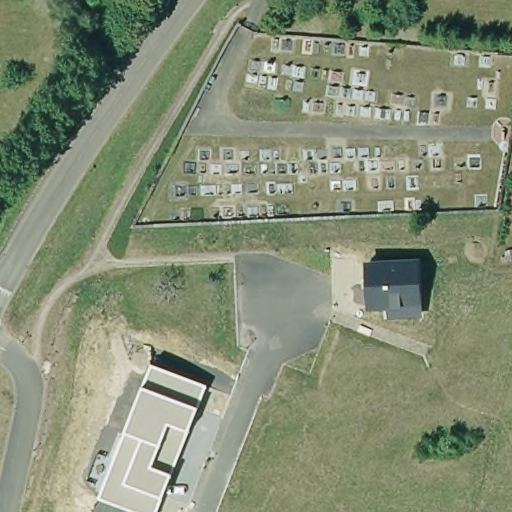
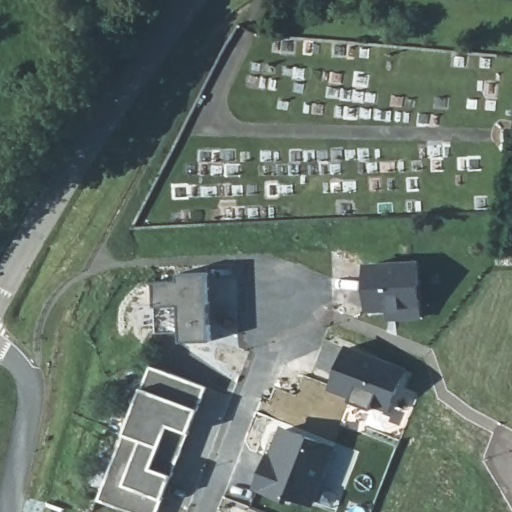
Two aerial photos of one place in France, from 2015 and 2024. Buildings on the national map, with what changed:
unchanged [(417,263),(420,316),(387,318),(387,308),(369,309),(367,266),(417,263)]
new [(210,272),(212,341),(182,342),(181,331),(158,332),(157,280),(180,279),(180,273),(210,272)]
new [(347,343),(408,367),(390,413),(329,389),(347,343)]
unchanged [(207,386),(199,410),(194,409),(186,429),(190,430),(182,453),(127,432),(152,365),(207,386)]
new [(336,447),(314,506),(290,496),(288,500),(267,492),(267,493),(253,488),(268,450),(272,451),(281,425),(336,447)]
unchanged [(172,477),(167,475),(160,495),(165,497),(158,512),(133,512),(100,499),(127,432),(182,453),(172,477)]

